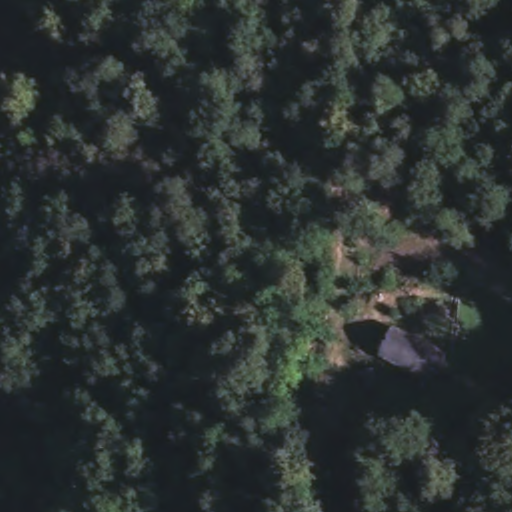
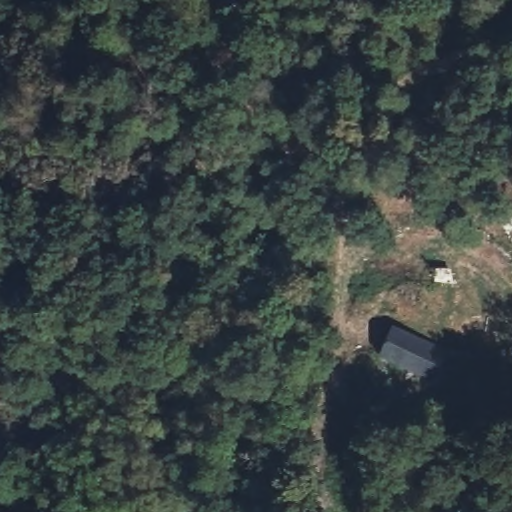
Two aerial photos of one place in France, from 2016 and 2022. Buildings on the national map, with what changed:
unchanged [(448,349),(428,385),(376,358),(392,324),(448,349)]
unchanged [(372,439),(367,488),(284,481),(291,432),(372,439)]

